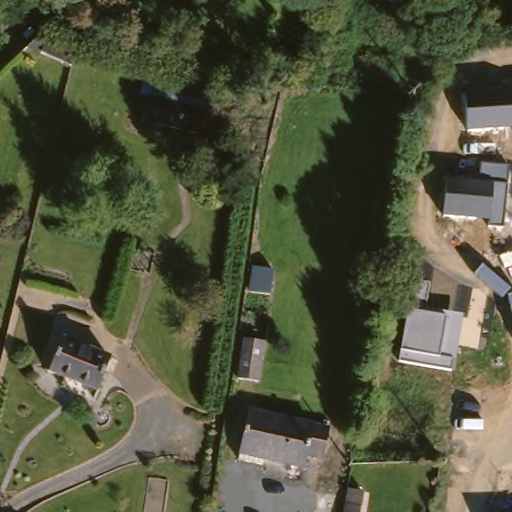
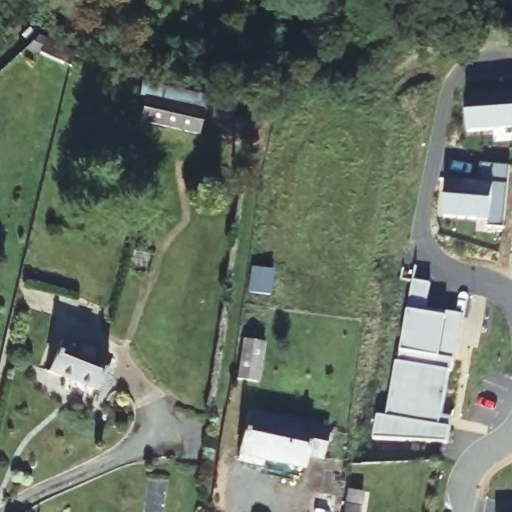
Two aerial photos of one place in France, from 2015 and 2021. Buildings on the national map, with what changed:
unchanged [(65,76),(34,51),(24,44),(33,35),(38,32),(44,37),(70,56),(65,76)]
unchanged [(466,130),(464,91),(512,88),(512,126),(466,130)]
unchanged [(191,101),(186,122),(138,112),(143,91),(191,101)]
unchanged [(502,227),(488,225),(488,220),(442,215),(446,176),(478,180),(480,164),(511,168),(502,227)]
unchanged [(451,370),(397,361),(398,349),(405,309),(410,281),(429,285),(424,314),(442,317),(443,312),(463,315),(451,370)]
unchanged [(240,367),(246,330),(268,333),(261,371),(240,367)]
unchanged [(106,356),(93,387),(48,367),(60,337),(106,356)]
new [(442,413),(453,417),(449,428),(447,443),(371,439),(376,416),(386,417),(397,361),(451,370),(442,413)]
unchanged [(327,426),(322,452),(308,449),(306,462),(261,453),(264,441),(244,437),(249,411),(327,426)]
unchanged [(343,493),(361,496),(359,512),(340,512),(343,493)]

